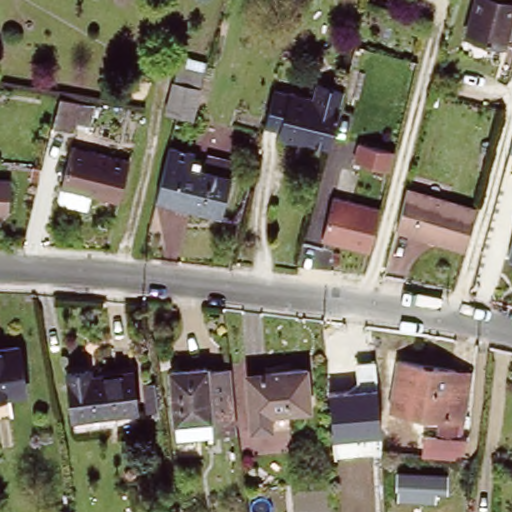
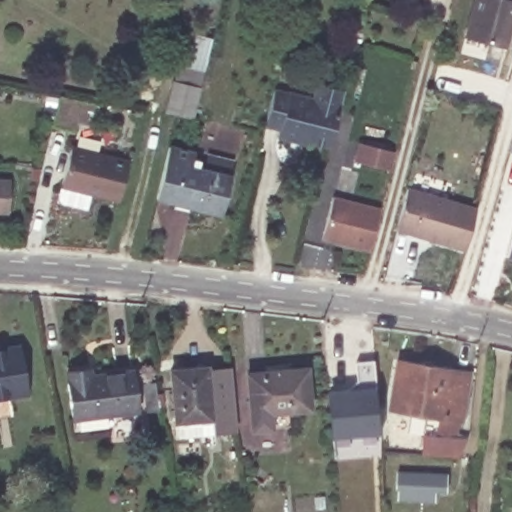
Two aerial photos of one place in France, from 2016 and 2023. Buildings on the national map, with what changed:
unchanged [(475,0),(512,0),(512,14),(504,45),(466,34),(475,0)]
unchanged [(179,54),(206,59),(190,120),(165,112),(179,54)]
unchanged [(308,143),(307,146),(277,139),(279,130),(264,126),(274,89),(290,94),(290,91),(313,97),(316,84),(343,91),(328,149),(308,143)]
unchanged [(62,96),(81,102),(78,114),(73,130),(54,126),(62,96)]
unchanged [(192,140),(189,165),(232,175),(226,213),(157,194),(170,135),(192,140)]
unchanged [(512,142),(512,152),(510,151),(512,142)]
unchanged [(90,195),(88,203),(75,199),(77,192),(62,188),(72,146),(132,160),(121,203),(90,195)]
unchanged [(407,182),(477,199),(466,240),(396,224),(407,182)]
unchanged [(0,203),(0,184),(2,184),(0,203)]
unchanged [(333,194),(379,205),(370,248),(321,239),(333,194)]
unchanged [(512,245),(512,259),(509,258),(512,245)]
unchanged [(13,346),(21,394),(4,397),(7,416),(0,417),(0,348),(13,346)]
unchanged [(472,373),(462,431),(442,428),(443,419),(390,409),(399,359),(472,373)]
unchanged [(236,431),(208,433),(207,419),(176,421),(171,370),(207,367),(207,369),(230,368),(236,431)]
unchanged [(271,422),(271,428),(252,429),(247,373),(306,368),(310,409),(288,411),(289,421),(271,422)]
unchanged [(91,376),(132,371),(138,411),(73,420),(67,373),(90,369),(91,376)]
unchanged [(160,409),(150,409),(146,384),(156,384),(160,409)]
unchanged [(343,388),(366,385),(368,419),(347,419),(343,388)]
unchanged [(424,454),(425,435),(468,439),(466,447),(461,457),(424,454)]
unchanged [(399,474),(446,477),(445,490),(398,488),(399,474)]

